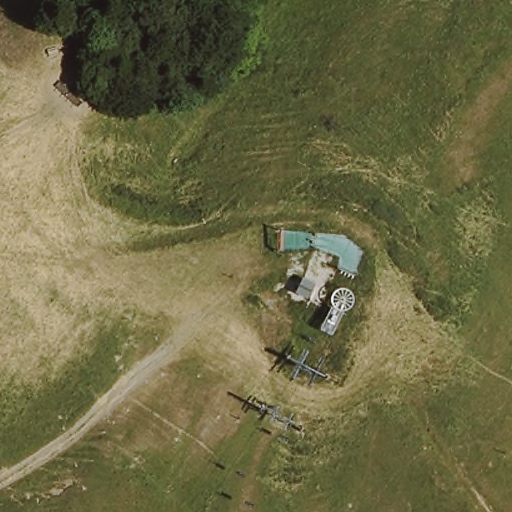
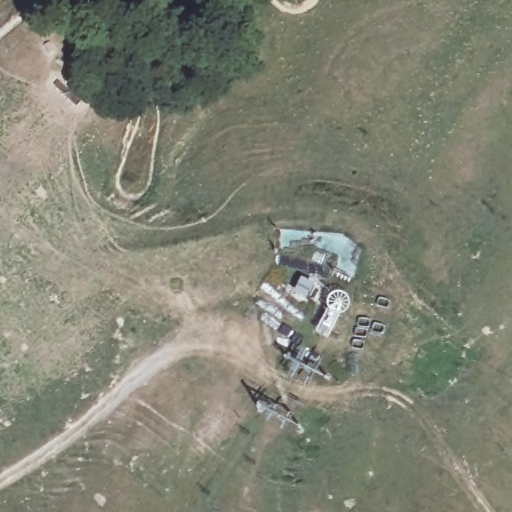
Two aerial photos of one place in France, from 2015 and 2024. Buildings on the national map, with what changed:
unchanged [(344,294),(332,329),(315,325),(333,275),(344,294)]

